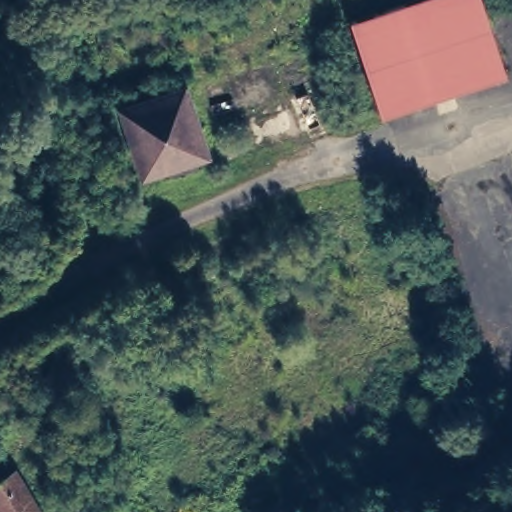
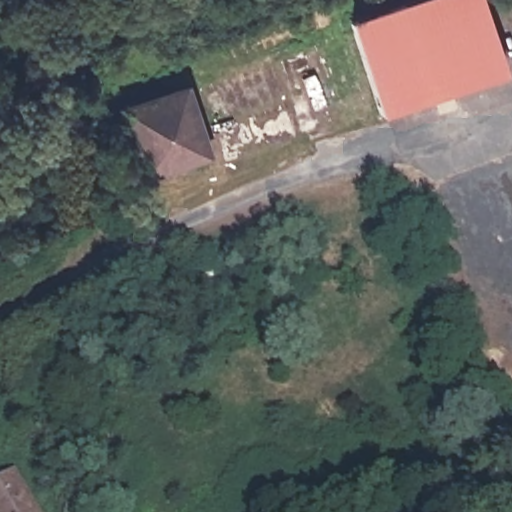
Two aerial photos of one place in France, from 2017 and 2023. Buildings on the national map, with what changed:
unchanged [(478,0),(502,74),(381,112),(352,20),(418,0),(478,0)]
unchanged [(215,157),(141,179),(119,107),(189,83),(215,157)]
unchanged [(39,512),(0,512),(0,490),(20,478),(22,487),(24,486),(39,512)]

